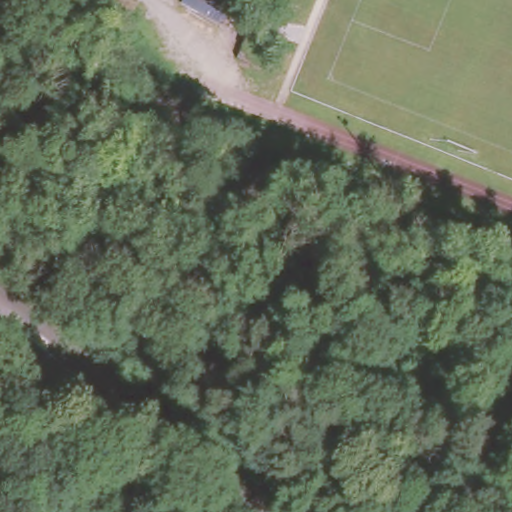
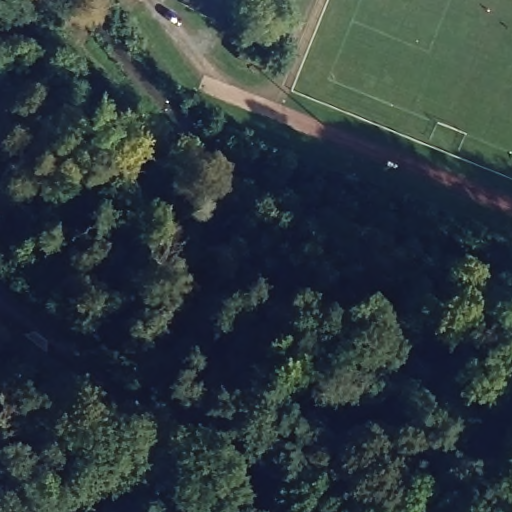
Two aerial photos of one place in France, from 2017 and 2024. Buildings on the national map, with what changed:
unchanged [(202,0),(231,15),(223,28),(184,7),(188,0),(202,0)]
unchanged [(248,34),(278,45),(268,70),(238,59),(248,34)]

